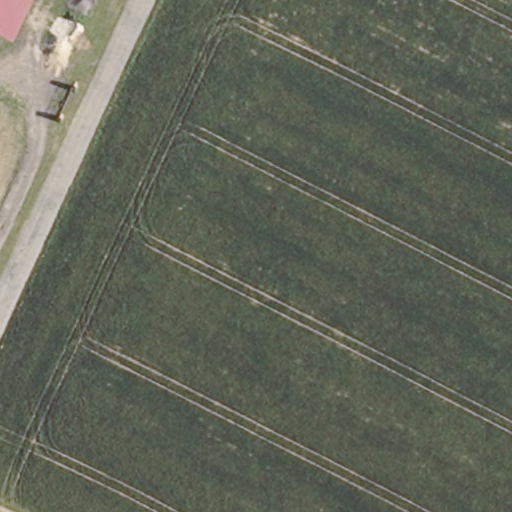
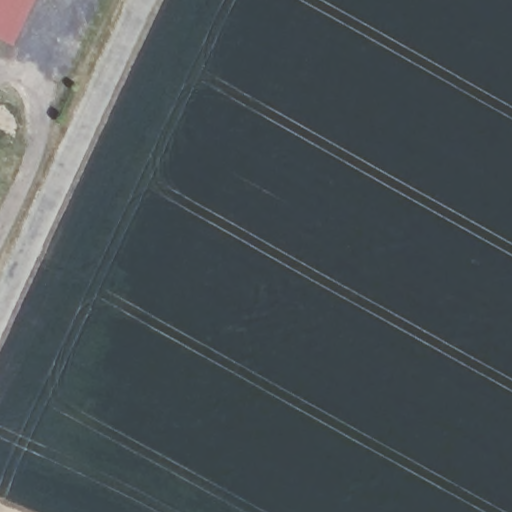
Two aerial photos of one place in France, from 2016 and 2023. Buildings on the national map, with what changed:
unchanged [(0,41),(0,0),(38,0),(15,49),(0,41)]

